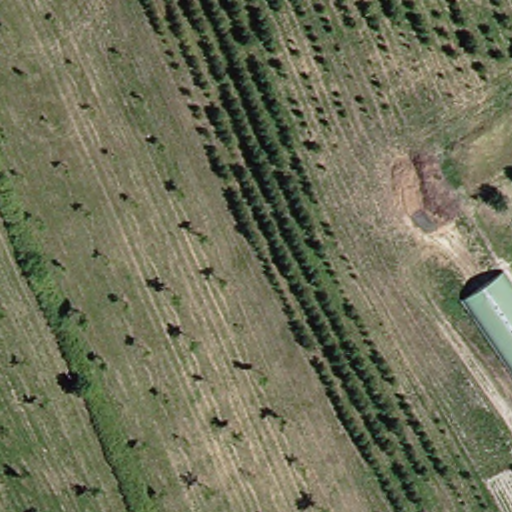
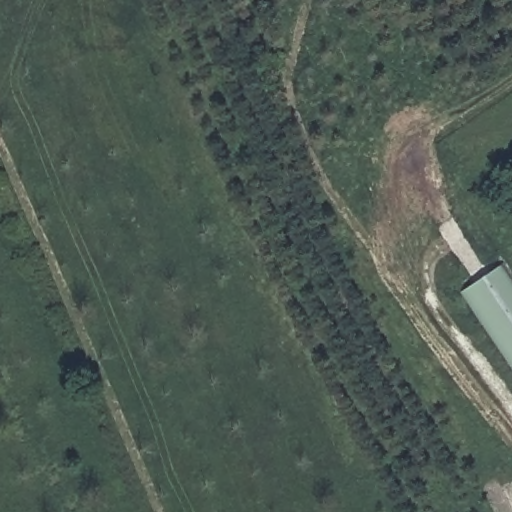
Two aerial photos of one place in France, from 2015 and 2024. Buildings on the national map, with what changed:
unchanged [(512,288),(512,364),(460,288),(494,262),(512,288)]

